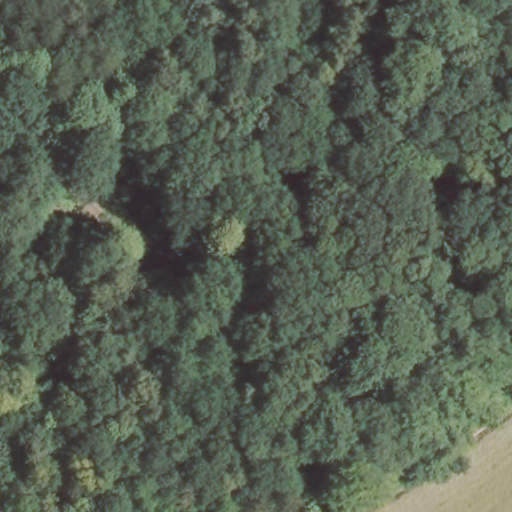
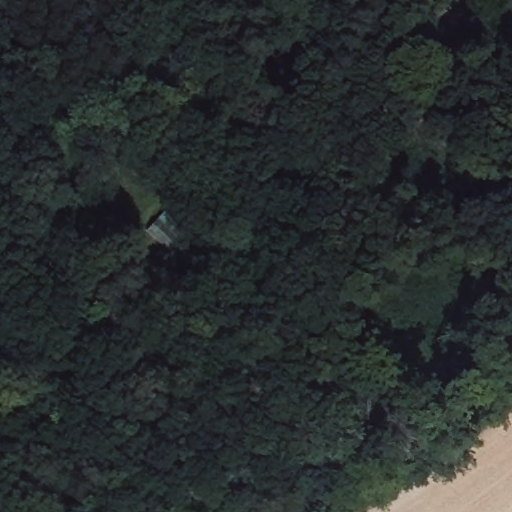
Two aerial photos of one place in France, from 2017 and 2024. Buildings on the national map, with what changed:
unchanged [(240,151),(253,172),(233,186),(213,171),(240,151)]
unchanged [(135,233),(155,212),(182,237),(167,256),(135,233)]

